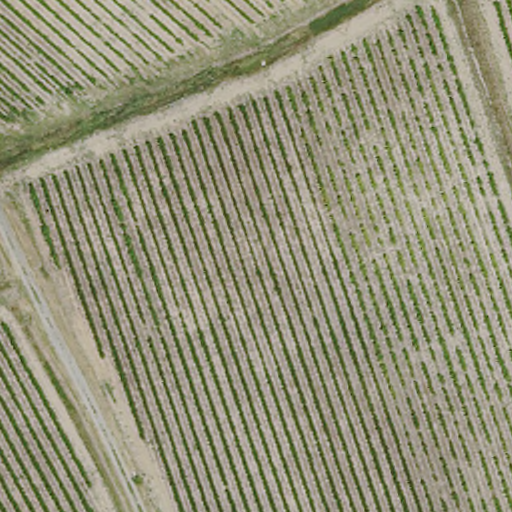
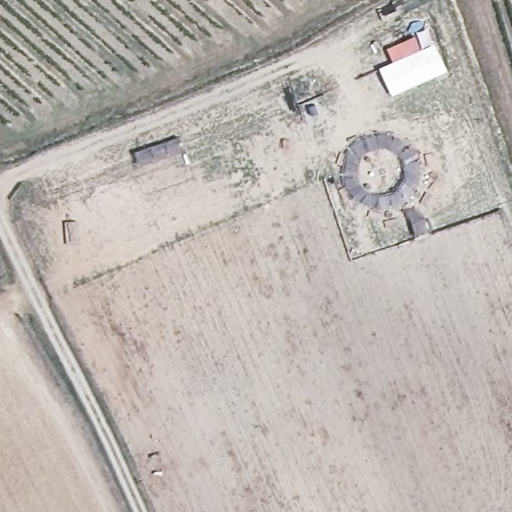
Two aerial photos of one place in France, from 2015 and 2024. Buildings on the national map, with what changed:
new [(394,63),(388,49),(416,37),(422,51),(435,45),(447,72),(392,97),(380,69),(394,63)]

